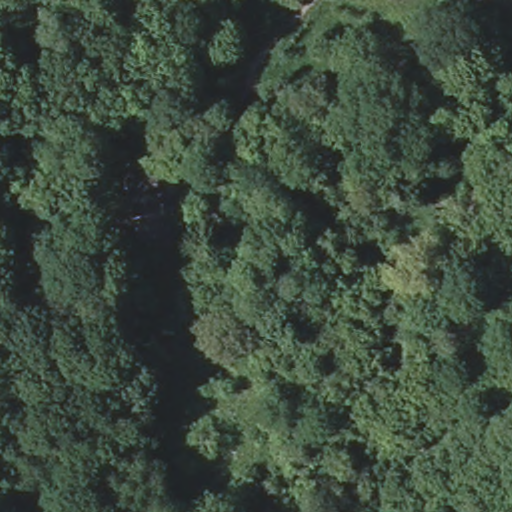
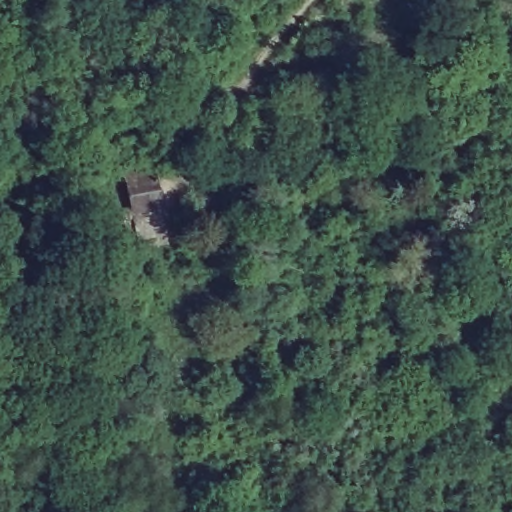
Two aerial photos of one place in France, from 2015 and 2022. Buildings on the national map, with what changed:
unchanged [(151,161),(158,203),(126,211),(118,166),(151,161)]

